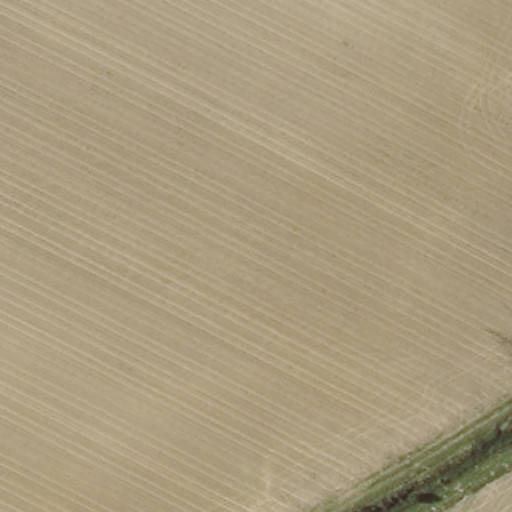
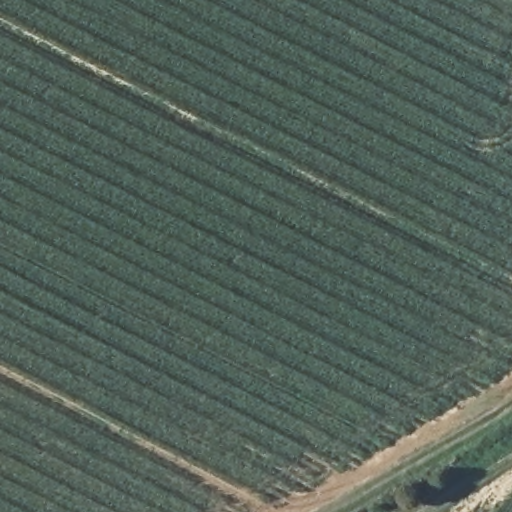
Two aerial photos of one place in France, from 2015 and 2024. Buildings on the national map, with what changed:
[]

